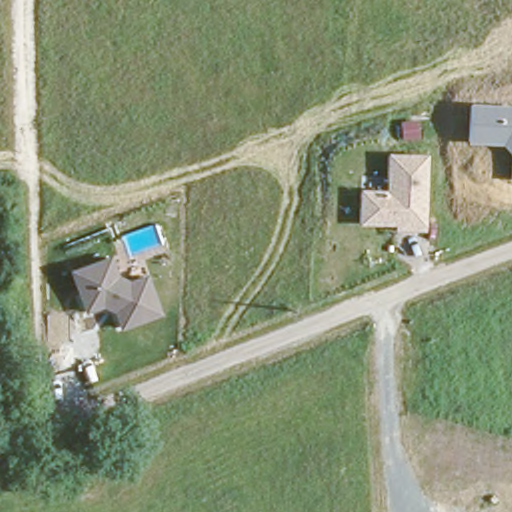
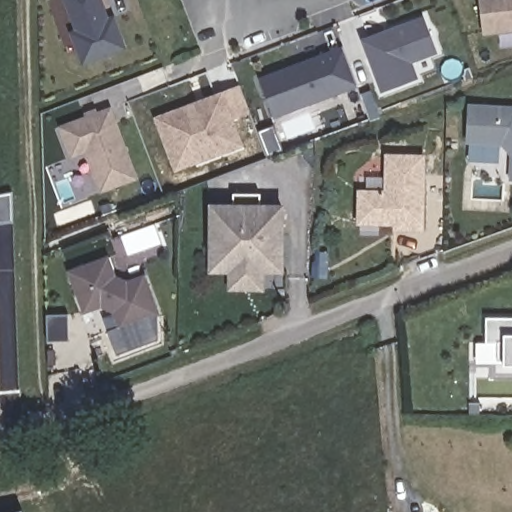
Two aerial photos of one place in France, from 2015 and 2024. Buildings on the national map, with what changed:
new [(68,32),(73,30),(62,0),(102,0),(108,16),(114,14),(127,48),(80,66),(68,32)]
new [(480,0),(512,0),(512,31),(483,34),(480,0)]
new [(438,54),(413,63),(420,79),(381,94),(361,39),(425,16),(438,54)]
new [(273,120),(257,77),(343,46),(358,87),(273,120)]
new [(251,113),(235,120),(245,146),(175,173),(154,116),(224,91),(241,84),(251,113)]
unchanged [(512,182),(509,182),(511,158),(501,145),(464,144),(467,104),(512,104),(512,182)]
new [(99,194),(84,153),(70,158),(57,126),(111,106),(139,179),(99,194)]
unchanged [(426,155),(424,232),(392,232),(392,226),(356,225),(356,188),(381,188),(383,153),(426,155)]
new [(13,193),(14,224),(0,226),(0,195),(13,193)]
new [(284,275),(266,274),(265,291),(227,290),(227,274),(208,273),(210,203),(286,204),(284,275)]
unchanged [(109,257),(117,277),(128,281),(146,274),(161,316),(120,331),(112,310),(99,307),(82,313),(68,272),(109,257)]
new [(72,313),(72,340),(50,340),(50,313),(72,313)]
new [(502,344),(485,344),(485,316),(512,316),(512,365),(502,365),(502,344)]
new [(23,512),(12,512),(22,508),(23,512)]

